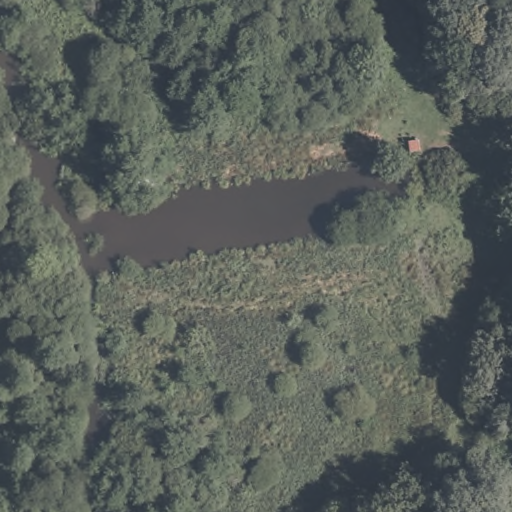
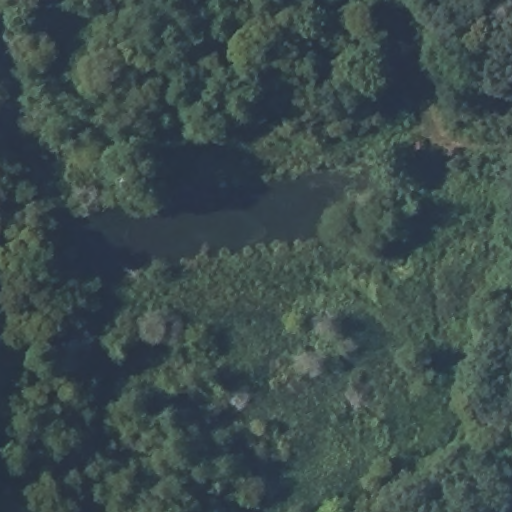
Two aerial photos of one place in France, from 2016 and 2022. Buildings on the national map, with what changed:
unchanged [(420,142),(421,152),(411,154),(410,143),(420,142)]

